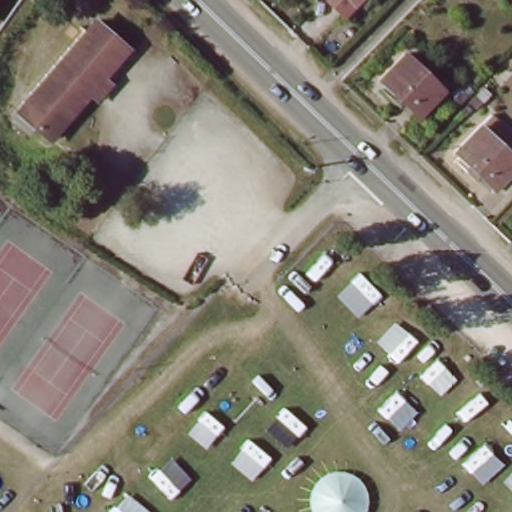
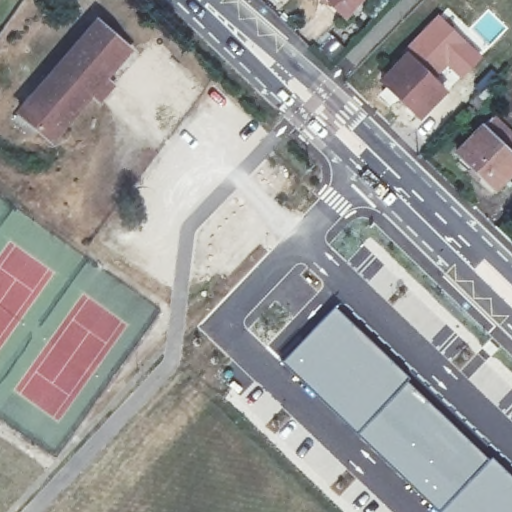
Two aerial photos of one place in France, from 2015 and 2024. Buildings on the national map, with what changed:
unchanged [(359,0),(349,10),(338,0),(359,0)]
unchanged [(99,103),(91,97),(55,141),(33,124),(20,113),(95,21),(102,29),(113,37),(126,49),(129,50),(122,59),(107,78),(115,83),(99,103)]
unchanged [(446,91),(420,119),(382,81),(408,54),(446,91)]
unchanged [(512,142),(512,163),(510,164),(512,166),(512,180),(493,199),(455,162),(493,123),(512,142)]
new [(335,304),(410,377),(356,433),(281,360),(335,304)]
new [(410,377),(410,379),(490,457),(438,512),(356,433),(410,377)]
new [(490,457),(492,455),(512,475),(512,512),(439,512),(438,512),(490,457)]

